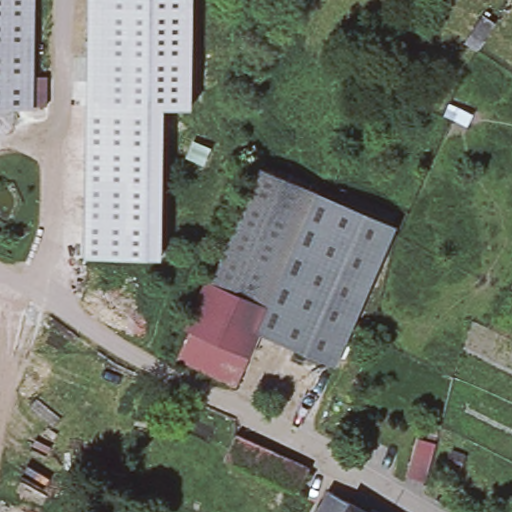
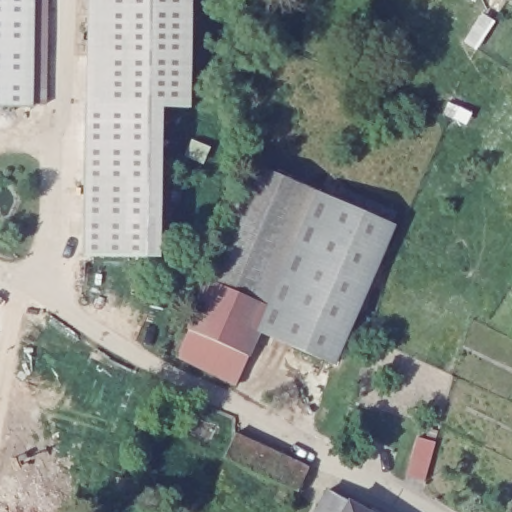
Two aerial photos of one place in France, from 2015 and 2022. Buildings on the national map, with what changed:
unchanged [(37,99),(37,100),(0,100),(0,0),(38,0),(38,71),(51,72),(51,99),(37,99)]
unchanged [(88,0),(191,0),(190,109),(163,107),(160,257),(84,256),(88,0)]
unchanged [(187,155),(193,141),(208,148),(203,161),(187,155)]
unchanged [(190,328),(226,251),(260,168),(319,193),(272,298),(260,332),(250,355),(191,328),(190,328)]
unchanged [(394,226),(334,364),(260,332),(272,298),(319,193),(394,226)]
unchanged [(191,328),(250,355),(238,384),(180,355),(191,328)]
unchanged [(236,434),(310,468),(299,492),(224,458),(236,434)]
unchanged [(436,441),(425,480),(408,475),(418,436),(436,441)]
unchanged [(344,501),(364,512),(313,512),(324,490),(344,501)]

